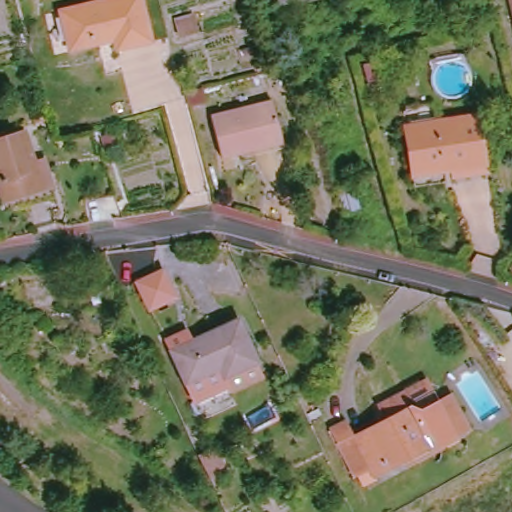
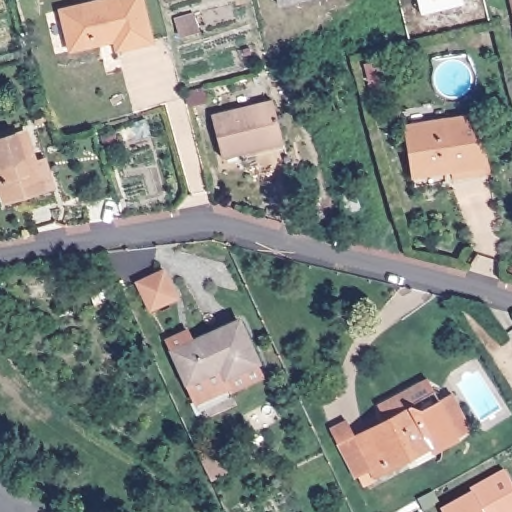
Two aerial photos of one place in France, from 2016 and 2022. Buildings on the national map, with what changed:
unchanged [(73,46),(65,12),(103,3),(114,0),(145,0),(155,41),(121,50),(119,40),(114,41),(113,42),(74,51),(73,46)]
unchanged [(512,0),(512,19),(506,0),(512,0)]
unchanged [(206,115),(266,98),(277,140),(217,156),(206,115)]
unchanged [(405,175),(401,121),(477,113),(482,170),(405,175)]
unchanged [(34,163),(29,166),(39,190),(4,203),(0,194),(0,141),(23,132),(34,163)]
unchanged [(336,185),(351,181),(358,207),(343,211),(336,185)]
unchanged [(162,268),(176,295),(149,308),(136,281),(162,268)]
unchanged [(233,392),(231,388),(196,404),(173,355),(168,344),(182,338),(182,339),(190,336),(194,345),(241,324),(258,363),(265,377),(233,392)]
unchanged [(372,467),(359,475),(332,430),(348,422),(356,435),(388,417),(380,403),(402,392),(414,410),(424,405),(436,399),(458,434),(446,440),(376,475),(372,467)]
new [(475,494),(472,490),(505,472),(512,483),(512,512),(444,512),(444,511),(475,494)]

